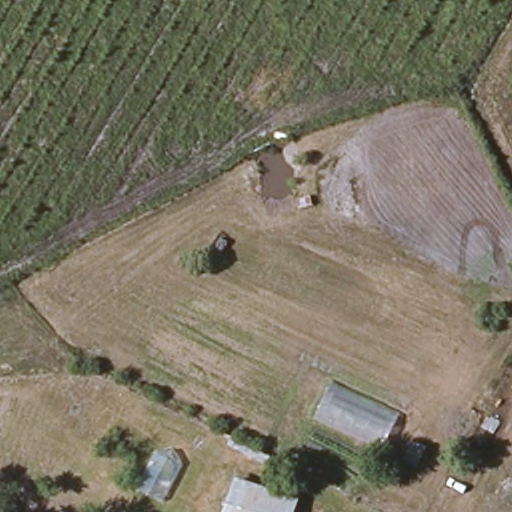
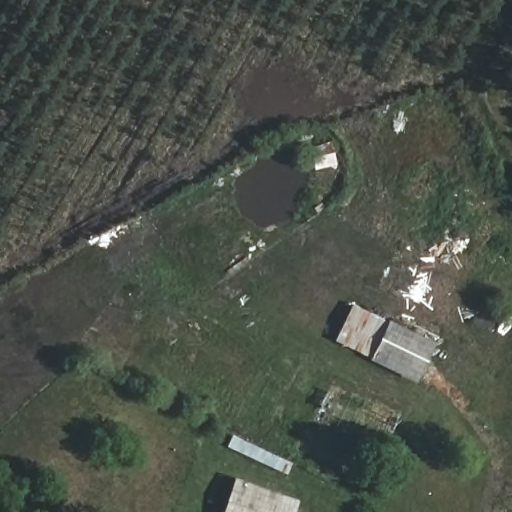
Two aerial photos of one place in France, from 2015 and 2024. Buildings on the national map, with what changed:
new [(417,383),(337,344),(356,305),(436,344),(417,383)]
unchanged [(224,512),(235,477),(300,498),(295,512),(224,512)]

